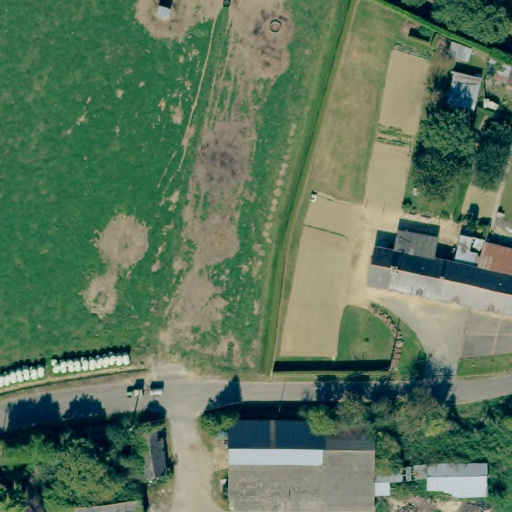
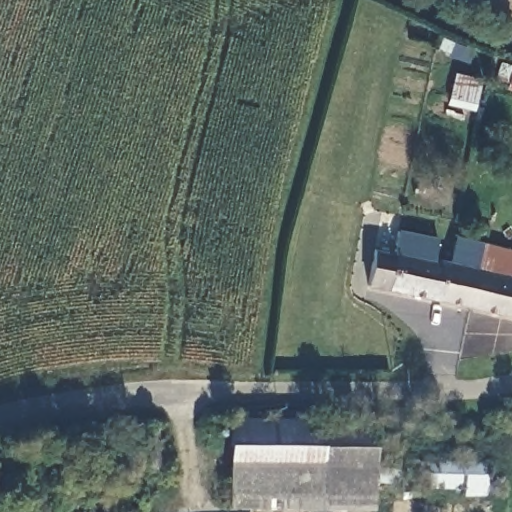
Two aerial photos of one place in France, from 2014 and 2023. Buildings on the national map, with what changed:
unchanged [(377,282),(385,247),(402,248),(407,227),(447,236),(445,256),(485,266),(476,303),(377,282)]
unchanged [(485,266),(490,238),(512,243),(512,311),(476,303),(485,266)]
unchanged [(175,467),(148,471),(141,424),(141,421),(168,417),(169,420),(175,467)]
unchanged [(486,460),(488,489),(373,495),(373,506),(313,506),(230,506),(229,468),(226,468),(226,430),(310,431),(315,432),(320,432),(373,434),(373,466),(486,460)]
unchanged [(64,487),(63,480),(97,476),(98,483),(149,476),(154,511),(149,512),(66,512),(64,488),(64,487)]

